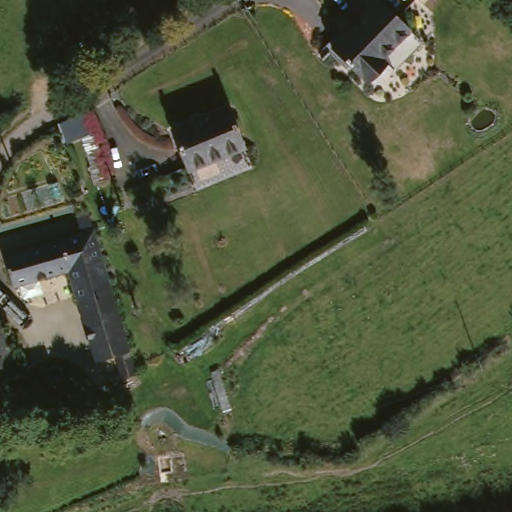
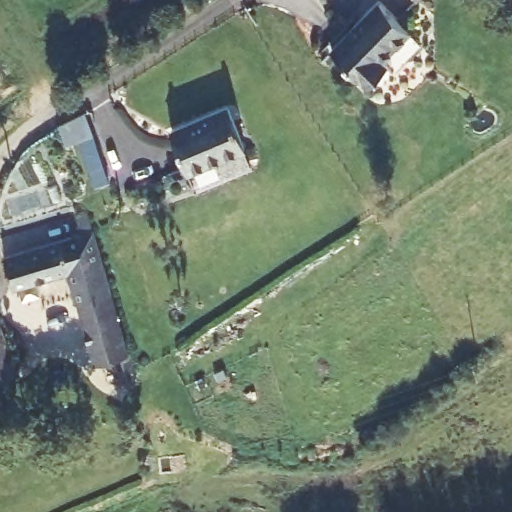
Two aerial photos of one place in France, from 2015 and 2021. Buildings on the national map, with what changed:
unchanged [(387,1),(415,31),(386,56),(391,64),(370,82),(339,46),(387,1)]
unchanged [(235,101),(255,142),(201,169),(181,129),(235,101)]
unchanged [(52,125),(85,110),(95,131),(60,144),(52,125)]
unchanged [(97,228),(114,283),(132,346),(120,350),(109,353),(97,356),(79,295),(70,266),(14,279),(6,253),(97,228)]
unchanged [(1,317),(22,368),(0,377),(0,317),(1,317)]

